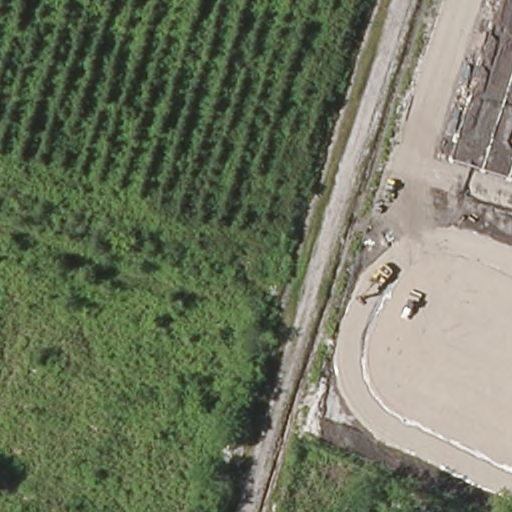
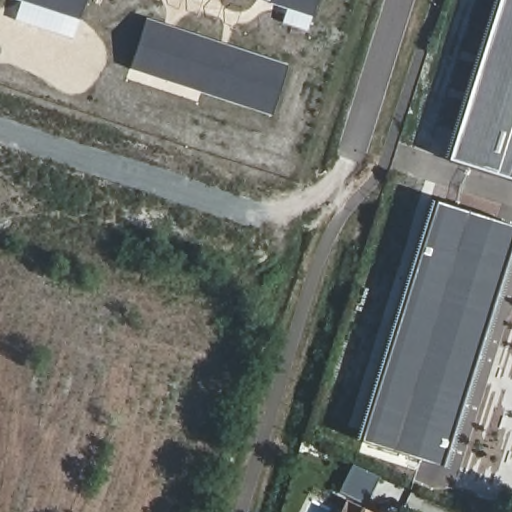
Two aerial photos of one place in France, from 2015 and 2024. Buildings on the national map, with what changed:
new [(81,19),(22,0),(87,0),(81,19)]
new [(315,17),(263,0),(321,0),(315,17)]
new [(447,161),(499,0),(512,0),(512,181),(447,161)]
new [(290,67),(276,114),(135,70),(155,20),(290,67)]
new [(432,202),(512,227),(512,241),(441,466),(363,440),(432,202)]
new [(372,512),(340,512),(346,499),(372,512)]

